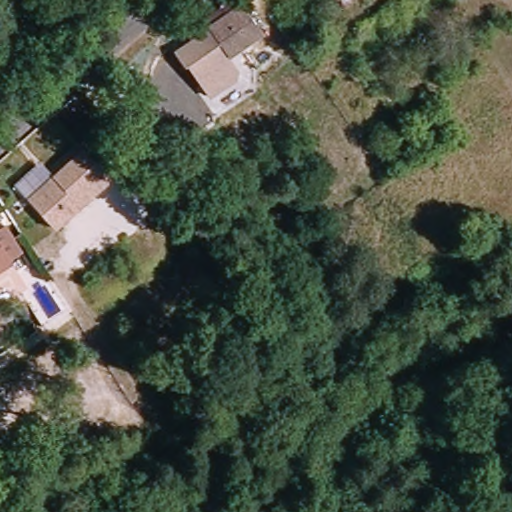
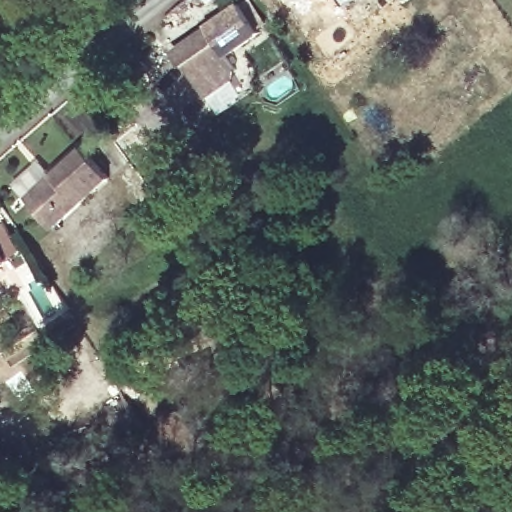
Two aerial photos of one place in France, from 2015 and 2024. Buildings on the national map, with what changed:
unchanged [(258,35),(226,58),(206,29),(239,6),(258,35)]
unchanged [(35,200),(91,151),(97,158),(119,184),(62,230),(39,205),(35,200)]
unchanged [(0,271),(0,229),(19,258),(0,271)]

